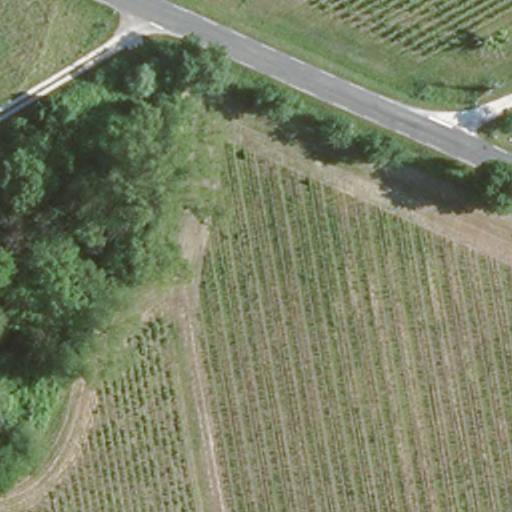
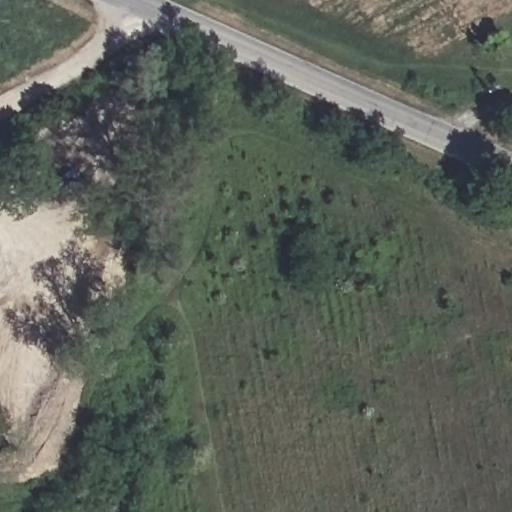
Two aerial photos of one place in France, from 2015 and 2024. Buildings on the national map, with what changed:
[]

